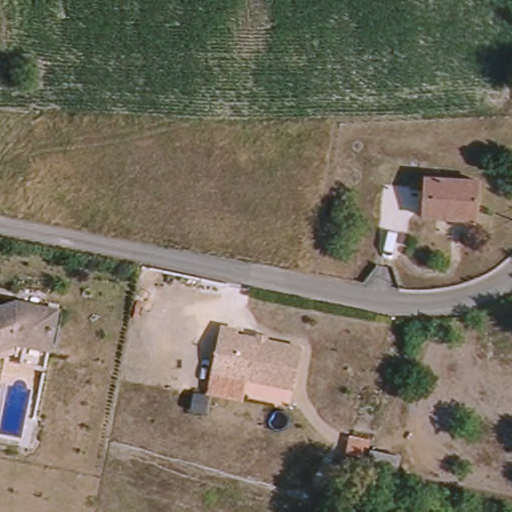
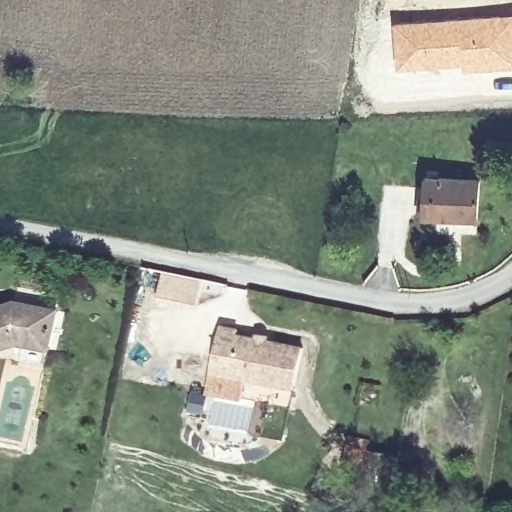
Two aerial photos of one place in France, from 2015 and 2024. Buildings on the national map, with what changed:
new [(512,70),(462,73),(461,66),(396,69),(393,21),(512,14),(512,70)]
unchanged [(426,176),(479,181),(475,222),(422,217),(426,176)]
new [(199,306),(173,300),(161,297),(167,272),(178,274),(204,280),(199,306)]
unchanged [(54,350),(23,343),(0,350),(0,310),(21,303),(62,312),(54,350)]
unchanged [(208,375),(216,331),(233,334),(232,338),(251,342),(251,337),(264,338),(263,345),(297,352),(289,391),(208,375)]

